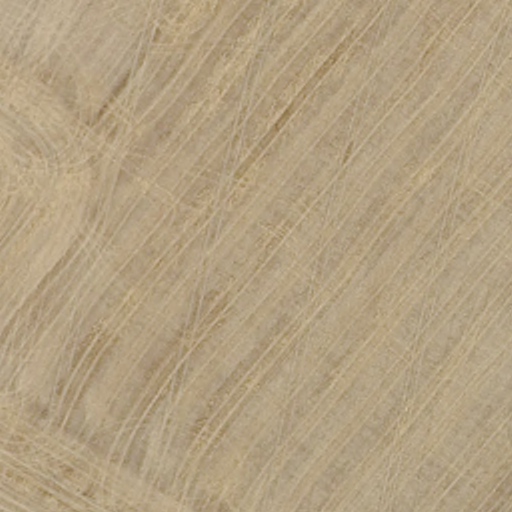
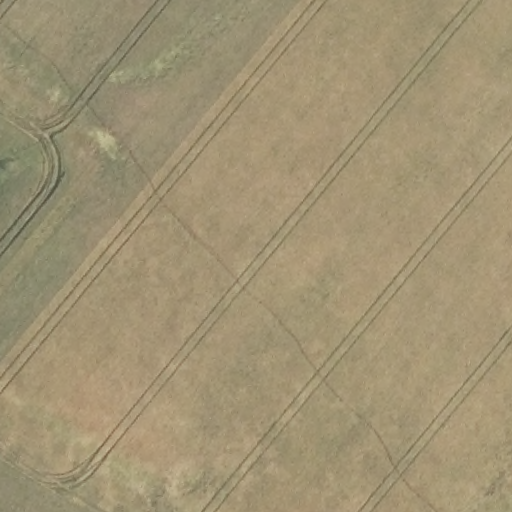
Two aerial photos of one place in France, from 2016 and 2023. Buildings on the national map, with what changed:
[]

